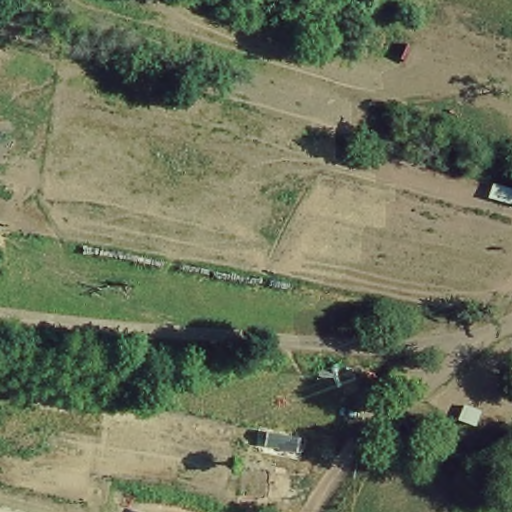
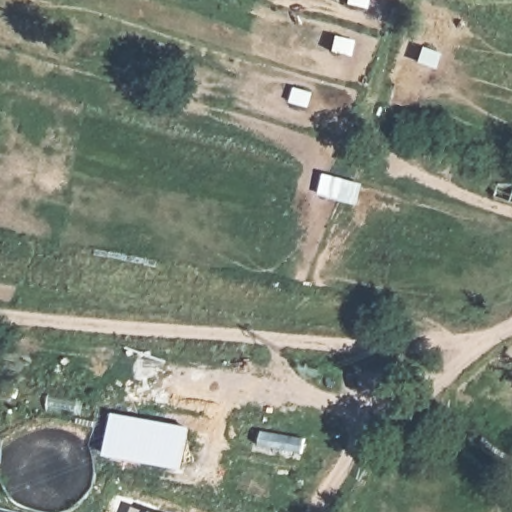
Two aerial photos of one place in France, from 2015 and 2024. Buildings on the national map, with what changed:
new [(111,412),(190,427),(182,472),(104,458),(111,412)]
new [(258,430),(305,438),(301,456),(255,448),(258,430)]

